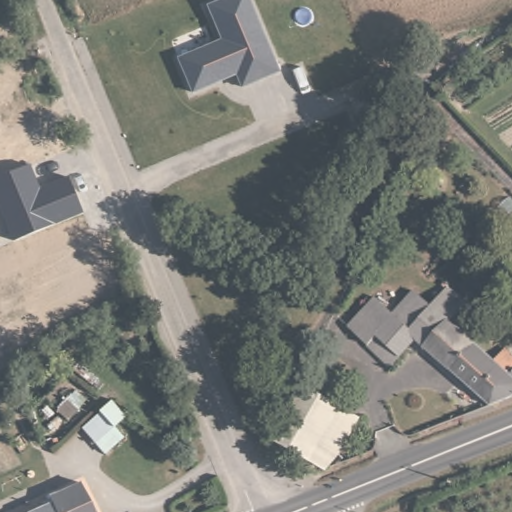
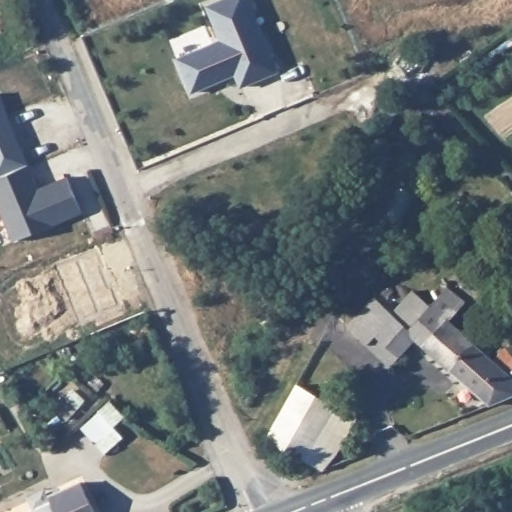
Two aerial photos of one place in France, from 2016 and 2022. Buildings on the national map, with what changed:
unchanged [(234,79),(193,95),(176,57),(219,40),(204,6),(219,0),(249,0),(277,72),(239,89),(234,79)]
new [(0,179),(0,99),(30,169),(0,179)]
unchanged [(0,210),(0,179),(30,169),(39,188),(69,177),(83,212),(12,241),(0,210)]
unchanged [(414,341),(391,368),(348,335),(373,301),(391,314),(411,289),(429,304),(445,287),(464,304),(461,309),(484,329),(472,343),(448,371),(414,341)]
unchanged [(448,371),(472,343),(487,358),(491,355),(505,368),(509,362),(512,364),(512,391),(485,402),(448,371)]
unchanged [(325,473),(260,444),(292,383),(360,418),(325,473)]
unchanged [(124,437),(102,456),(80,426),(101,409),(111,400),(125,416),(114,426),(124,437)]
unchanged [(57,504),(54,493),(83,483),(89,479),(102,512),(39,512),(57,504)]

